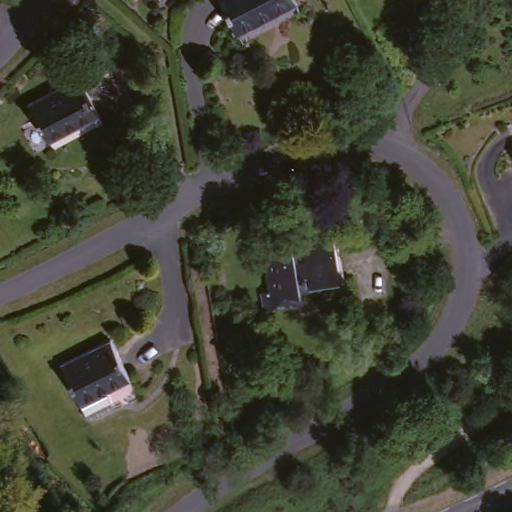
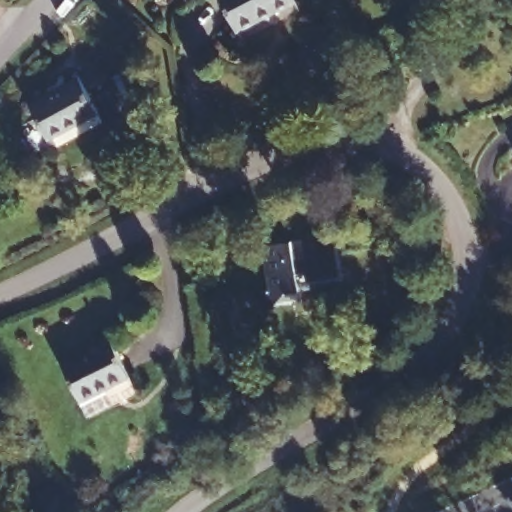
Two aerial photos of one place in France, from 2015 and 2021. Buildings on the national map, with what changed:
unchanged [(224,0),(294,0),(239,29),(224,0)]
unchanged [(35,101),(79,74),(98,107),(53,135),(35,101)]
unchanged [(268,241),(341,229),(351,277),(306,285),(308,297),(276,301),(268,241)]
unchanged [(91,415),(83,398),(64,361),(111,338),(128,376),(106,387),(113,403),(91,415)]

